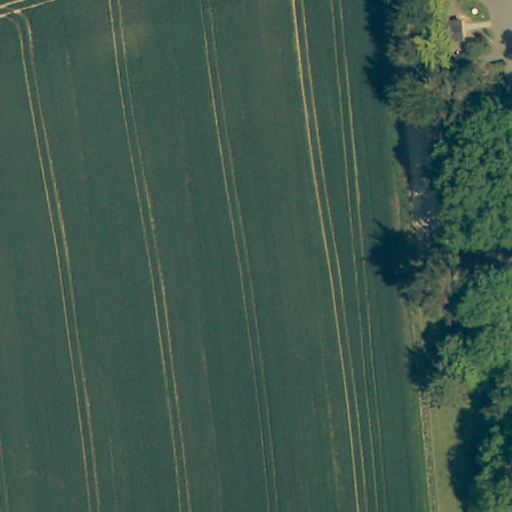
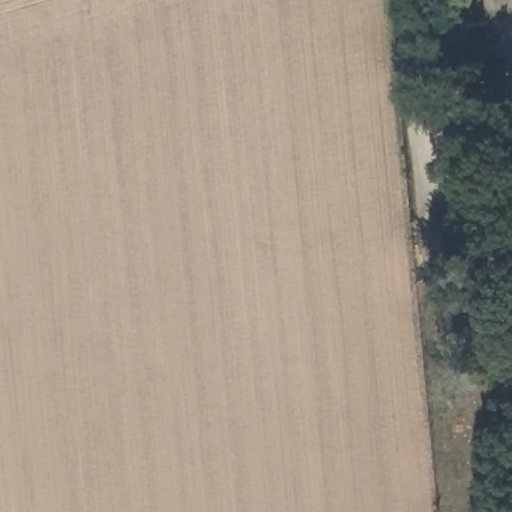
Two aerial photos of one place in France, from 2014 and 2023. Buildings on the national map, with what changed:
unchanged [(465,37),(449,40),(447,21),(462,19),(465,37)]
unchanged [(465,71),(467,69),(469,67),(471,66),(474,66),(476,66),(477,66),(479,67),(481,69),(483,71),(483,72),(484,75),(484,76),(484,77),(483,79),(483,80),(482,81),(481,82),(480,84),(478,84),(477,85),(475,85),(474,85),(472,85),(471,85),(470,84),(468,83),(468,82),(466,81),(465,79),(465,77),(465,75),(465,71)]
unchanged [(477,90),(480,91),(483,93),(490,134),(477,138),(468,90),(477,90)]
unchanged [(512,121),(508,104),(512,103),(512,121)]
unchanged [(512,157),(482,161),(479,142),(512,137),(512,157)]
unchanged [(512,222),(493,225),(491,205),(512,201),(512,222)]

